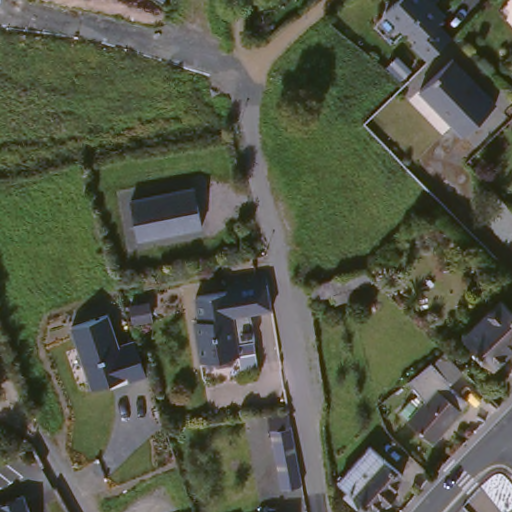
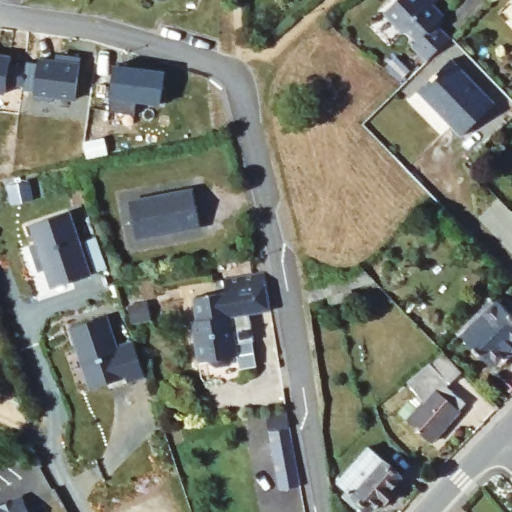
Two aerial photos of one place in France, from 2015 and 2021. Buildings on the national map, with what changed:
unchanged [(159,0),(165,0),(163,3),(159,0)]
unchanged [(417,40),(423,35),(412,24),(409,27),(390,7),(398,0),(439,0),(449,10),(443,16),(443,20),(455,33),(431,56),(417,40)]
new [(23,60),(36,61),(37,56),(53,59),(54,50),(81,54),(80,62),(75,99),(53,96),(52,100),(32,99),(33,92),(21,90),(21,85),(6,84),(4,92),(0,92),(0,54),(9,55),(8,65),(21,67),(23,60)]
unchanged [(505,94),(472,125),(429,81),(461,50),(505,94)]
new [(114,62),(165,67),(161,101),(137,98),(135,112),(109,109),(114,62)]
unchanged [(171,192),(198,187),(201,202),(205,225),(142,239),(134,200),(171,192)]
new [(36,241),(30,222),(68,210),(89,273),(51,286),(45,267),(38,269),(29,243),(36,241)]
unchanged [(364,268),(375,280),(351,288),(354,297),(335,303),(335,301),(330,302),(328,295),(309,301),(307,286),(364,268)]
unchanged [(275,308),(253,311),(258,340),(241,342),(243,353),(238,355),(238,357),(234,362),(222,365),(216,360),(216,358),(204,360),(198,320),(203,318),(199,296),(231,291),(229,278),(270,272),(275,308)]
unchanged [(512,349),(498,362),(468,330),(504,295),(512,303),(512,349)]
unchanged [(71,326),(109,315),(119,344),(134,338),(146,375),(91,390),(71,326)]
unchanged [(450,388),(433,370),(444,358),(462,376),(450,388)]
unchanged [(425,408),(408,387),(429,370),(450,390),(447,392),(466,410),(461,416),(432,448),(408,426),(425,408)]
unchanged [(306,481),(286,485),(275,426),(295,423),(306,481)]
unchanged [(348,492),(353,487),(343,478),(374,443),(407,472),(396,485),(387,495),(376,507),(366,499),(361,505),(348,492)]
unchanged [(22,496),(29,512),(0,512),(0,506),(22,496)]

